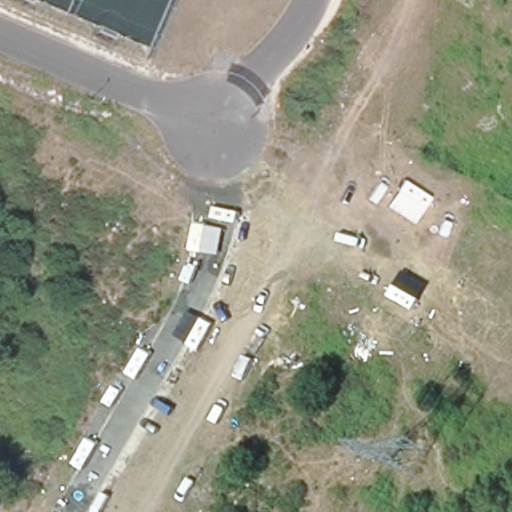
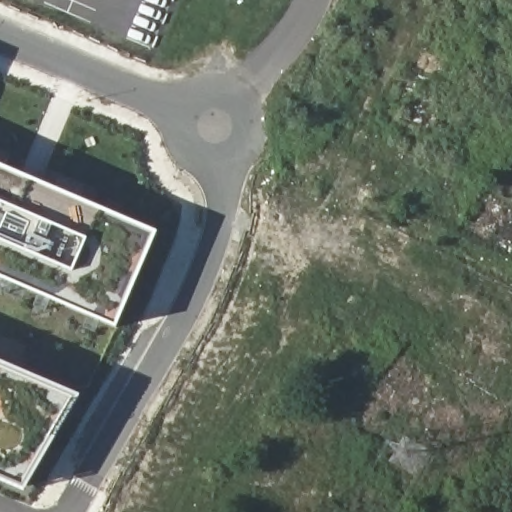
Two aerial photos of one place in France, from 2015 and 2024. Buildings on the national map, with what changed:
new [(124,323),(0,270),(0,160),(161,227),(124,323)]
new [(28,481),(0,470),(0,361),(81,396),(28,481)]

